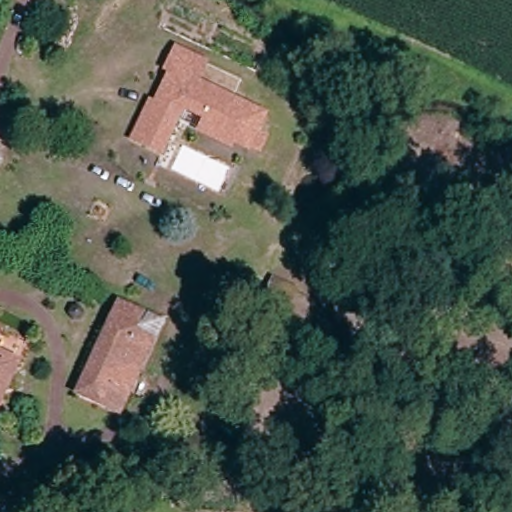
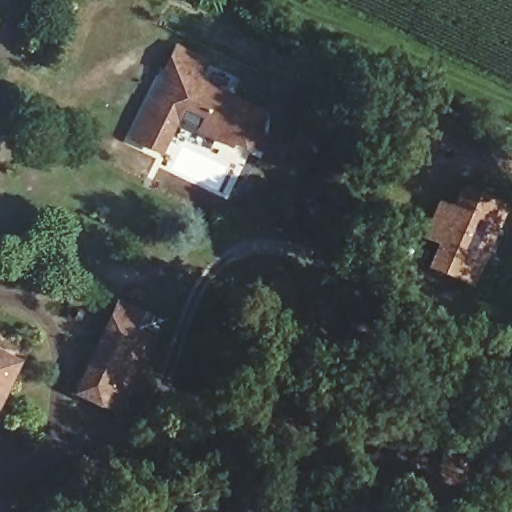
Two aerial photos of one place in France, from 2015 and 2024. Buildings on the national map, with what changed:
unchanged [(132,142),(140,125),(150,105),(157,108),(173,75),(166,72),(176,51),(206,65),(197,84),(265,117),(248,152),(233,144),(231,149),(199,133),(205,120),(183,109),(169,139),(161,155),(132,142)]
new [(452,207),(460,187),(505,204),(472,288),(426,271),(436,245),(421,240),(435,201),(452,207)]
unchanged [(298,290),(288,315),(260,303),(270,279),(298,290)]
unchanged [(73,400),(115,310),(138,321),(157,330),(147,351),(115,420),(73,400)]
unchanged [(245,317),(260,323),(250,347),(234,340),(245,317)]
unchanged [(0,361),(17,369),(0,405),(0,361)]

